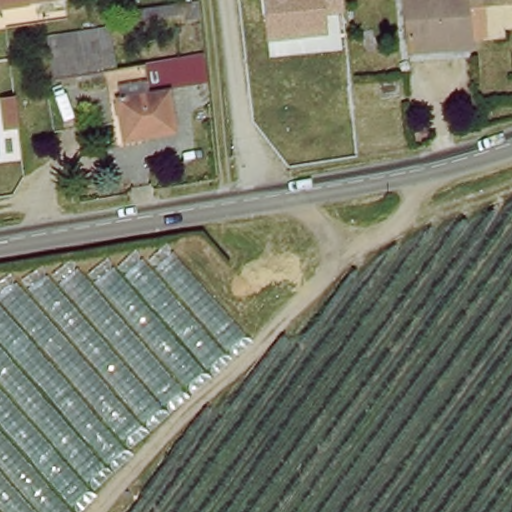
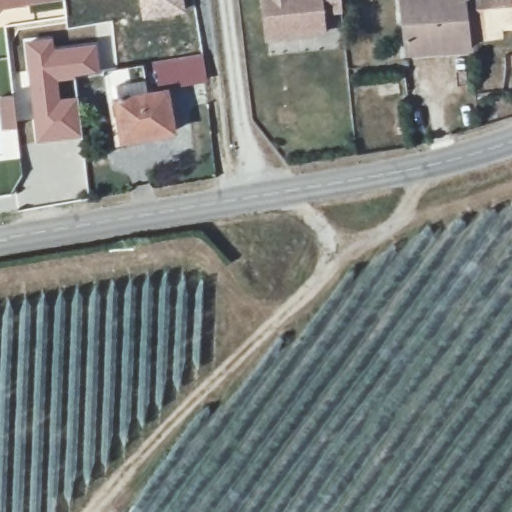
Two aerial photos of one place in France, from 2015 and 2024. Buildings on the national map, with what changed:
unchanged [(26,3),(0,6),(0,0),(26,0),(26,3)]
new [(186,13),(142,21),(138,0),(184,0),(186,13)]
unchanged [(344,15),(328,16),(329,36),(267,42),(262,0),(343,0),(344,15)]
unchanged [(410,0),(473,0),(477,32),(479,44),(462,43),(431,45),(413,47),(410,0)]
unchanged [(506,17),(508,33),(477,32),(473,0),(504,0),(506,17)]
unchanged [(506,17),(504,0),(512,0),(512,18),(506,17)]
unchanged [(72,45),(116,36),(122,67),(115,68),(98,72),(79,74),(69,76),(57,78),(51,48),(72,45)]
unchanged [(122,67),(208,52),(208,55),(211,76),(151,86),(151,93),(173,89),(181,131),(128,141),(115,68),(122,67)]
new [(18,128),(0,130),(0,125),(0,96),(14,95),(18,128)]
demolished [(0,512),(0,286),(174,257),(245,343),(77,512),(0,512)]

